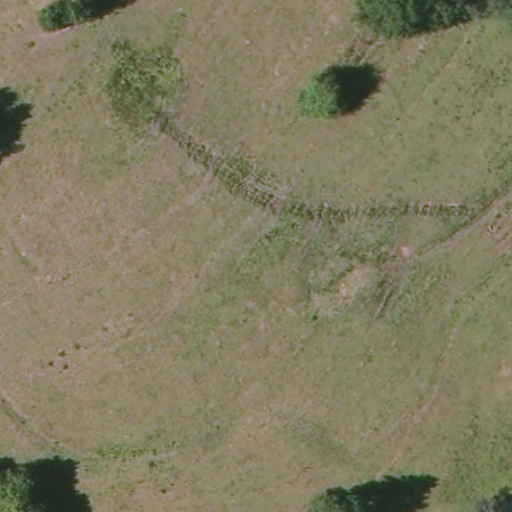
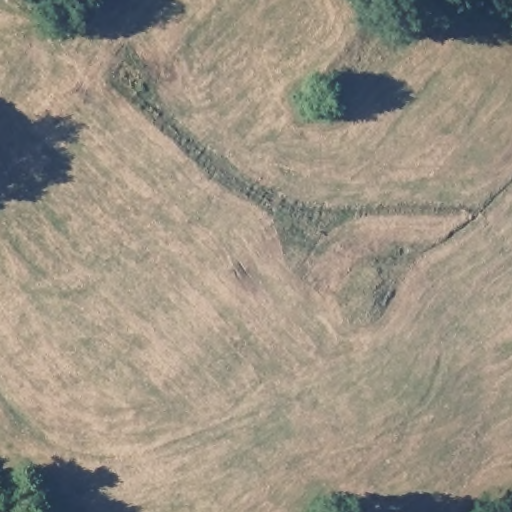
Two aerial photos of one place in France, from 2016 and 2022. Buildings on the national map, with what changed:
[]

